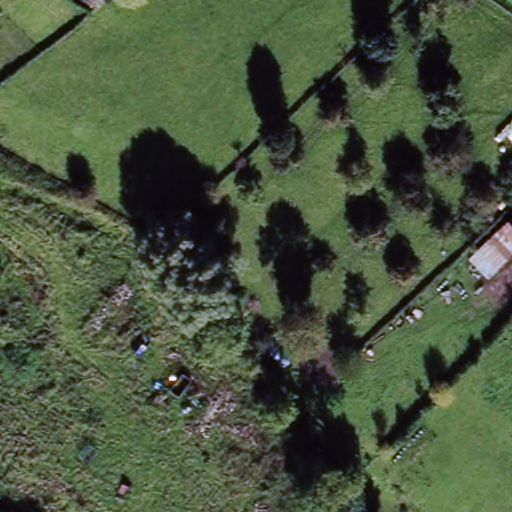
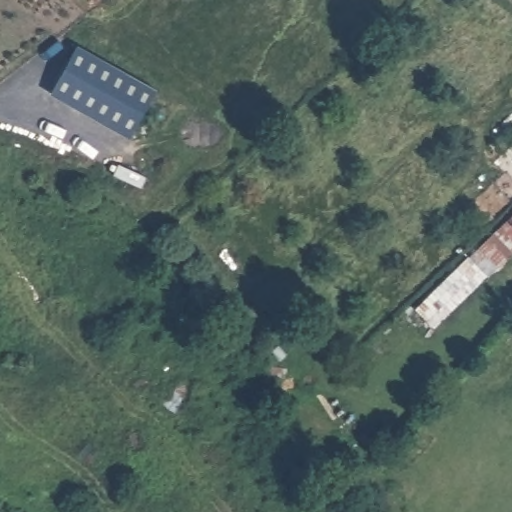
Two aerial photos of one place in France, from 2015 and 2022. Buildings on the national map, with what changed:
new [(50,96),(78,47),(159,94),(131,142),(50,96)]
unchanged [(468,258),(510,219),(512,221),(512,255),(487,279),(468,258)]
new [(484,275),(433,327),(425,335),(415,337),(405,327),(413,309),(466,257),(468,258),(484,275)]

